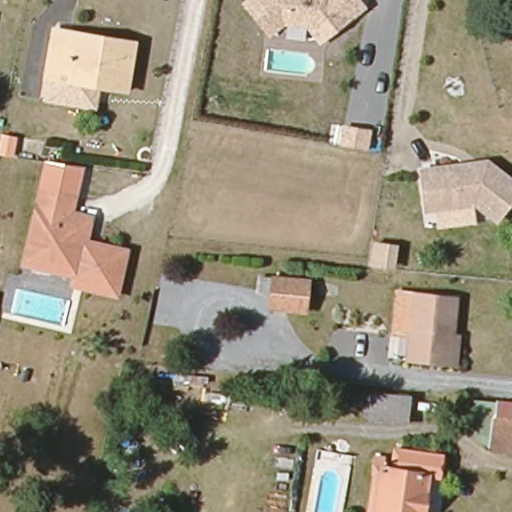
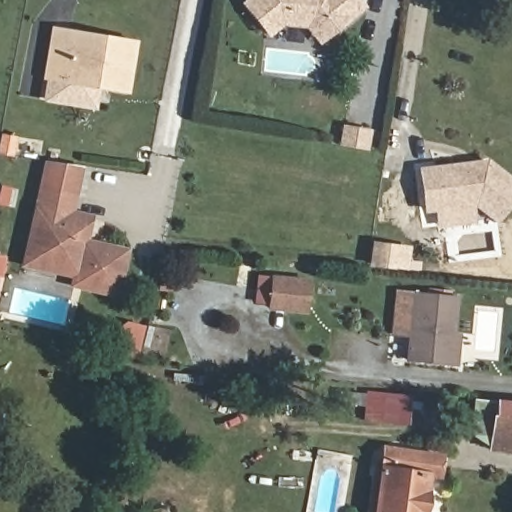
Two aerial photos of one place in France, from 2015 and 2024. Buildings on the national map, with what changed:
unchanged [(306,27),(283,25),(267,37),(239,5),(245,0),(361,0),(366,7),(319,44),(306,27)]
unchanged [(49,92),(53,72),(47,71),(56,28),(57,23),(74,26),(73,31),(133,44),(125,87),(99,81),(95,101),(49,92)]
unchanged [(338,145),(341,123),(372,129),(368,151),(338,145)]
unchanged [(486,159),(512,178),(512,196),(497,217),(475,201),(427,209),(420,170),(486,159)]
unchanged [(42,160),(82,168),(74,211),(94,215),(89,245),(79,244),(81,232),(69,216),(63,215),(66,199),(34,193),(42,160)]
unchanged [(24,250),(34,193),(66,199),(63,215),(69,216),(81,232),(79,244),(89,245),(118,250),(111,292),(69,285),(70,276),(21,268),(24,250)]
unchanged [(367,268),(370,240),(398,244),(394,270),(367,268)]
unchanged [(302,285),(299,306),(266,302),(269,281),(302,285)]
unchanged [(452,332),(458,335),(457,364),(408,361),(410,338),(395,336),(399,294),(454,299),(452,332)]
unchanged [(404,400),(401,425),(364,421),(367,396),(404,400)]
unchanged [(488,450),(494,397),(512,399),(512,452),(488,450)]
unchanged [(392,468),(396,448),(426,452),(424,472),(428,473),(423,512),(379,512),(385,467),(392,468)]

